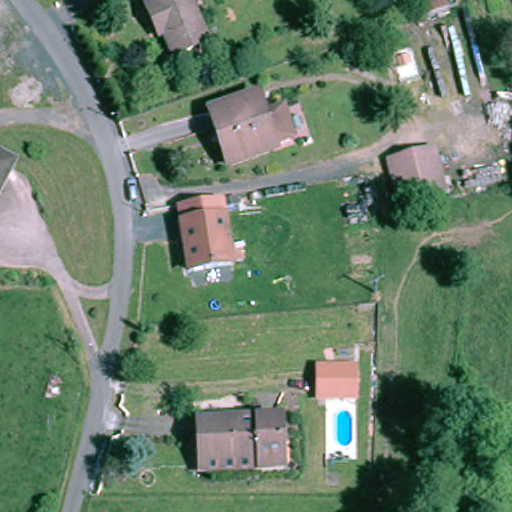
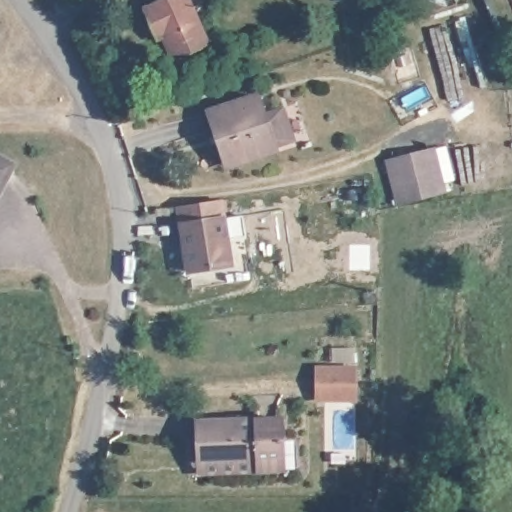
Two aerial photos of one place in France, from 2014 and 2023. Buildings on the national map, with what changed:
unchanged [(152,9),(172,0),(196,0),(215,43),(181,58),(172,37),(165,40),(162,31),(152,9)]
unchanged [(272,141),(273,145),(230,160),(217,127),(212,129),(204,109),(254,91),(260,110),(275,105),(280,107),(289,131),(287,136),(272,141)]
unchanged [(403,201),(394,160),(435,150),(445,191),(403,201)]
unchanged [(14,165),(0,190),(0,157),(14,165)]
unchanged [(228,213),(235,267),(183,274),(176,222),(228,213)]
unchanged [(360,365),(358,401),(315,400),(315,364),(360,365)]
unchanged [(205,417),(290,413),(293,465),(267,465),(208,468),(207,457),(205,417)]

